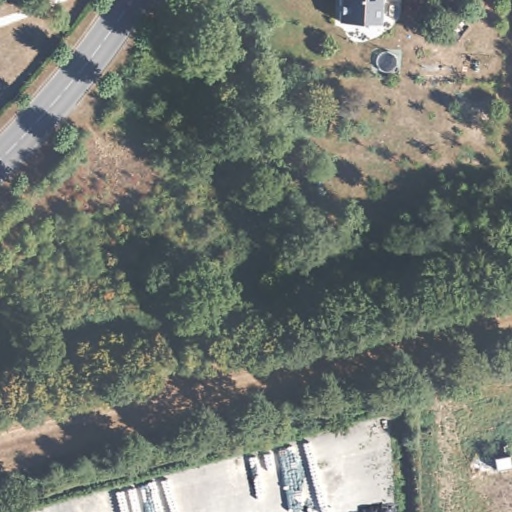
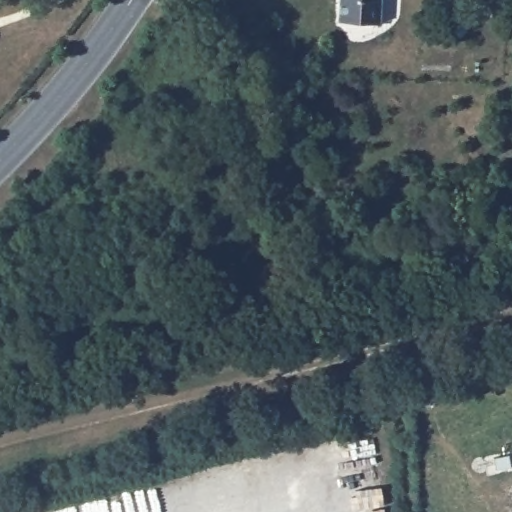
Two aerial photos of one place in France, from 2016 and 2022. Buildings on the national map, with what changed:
unchanged [(339,24),(340,0),(381,0),(380,25),(339,24)]

